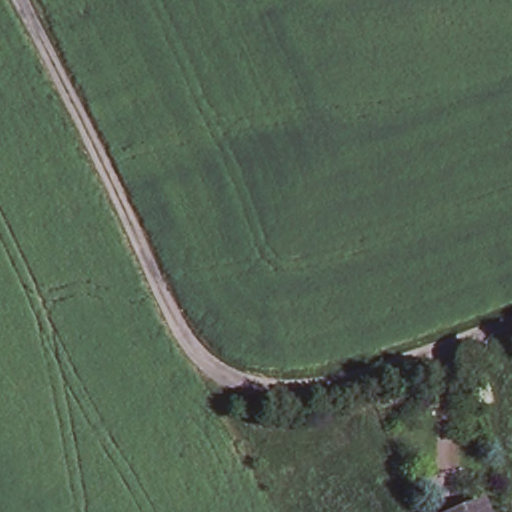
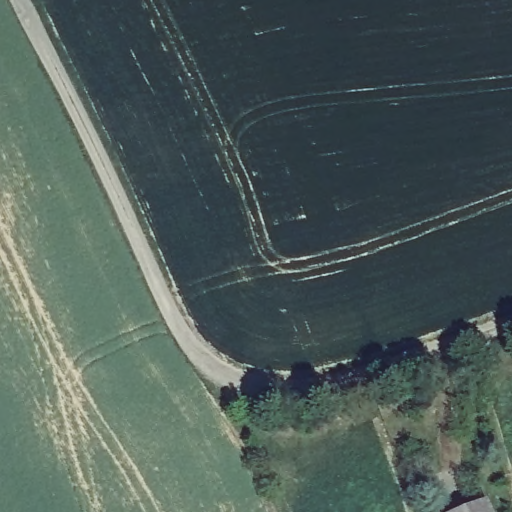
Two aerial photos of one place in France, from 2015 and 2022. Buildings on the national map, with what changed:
unchanged [(446,512),(488,497),(494,512),(446,512)]

